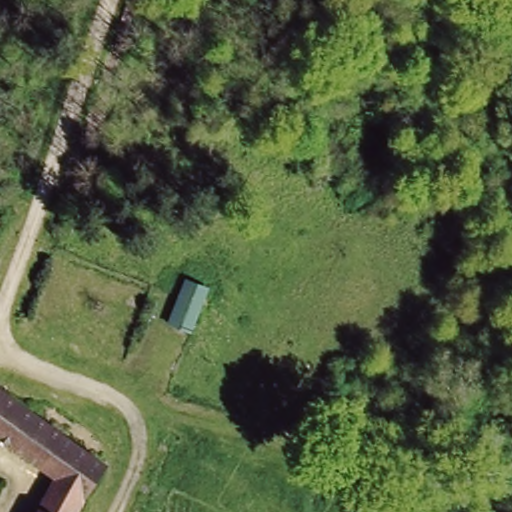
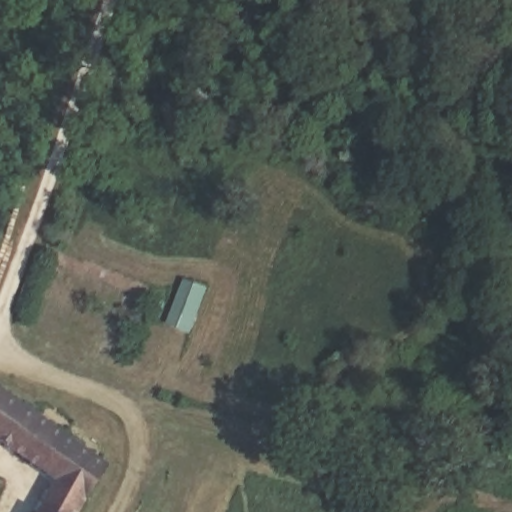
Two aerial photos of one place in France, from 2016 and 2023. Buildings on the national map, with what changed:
unchanged [(205,289),(188,330),(169,323),(185,280),(205,289)]
unchanged [(87,489),(76,512),(36,512),(53,477),(0,440),(0,384),(113,461),(94,496),(87,489)]

